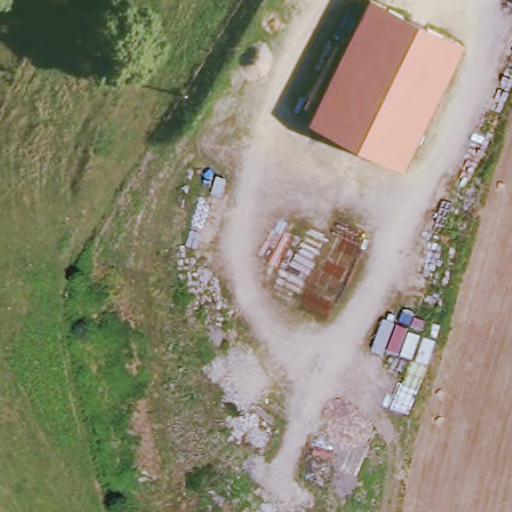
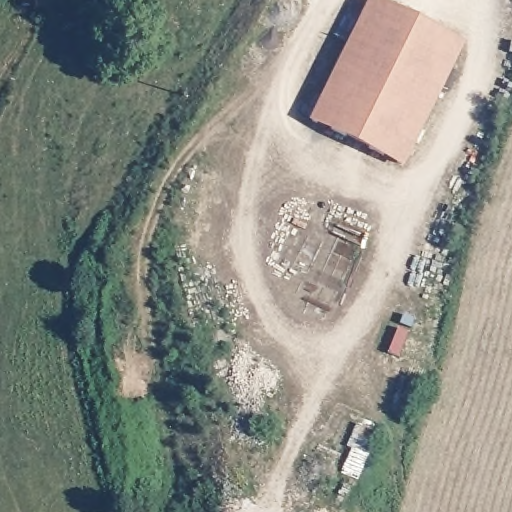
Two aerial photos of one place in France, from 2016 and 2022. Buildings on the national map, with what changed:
unchanged [(395,170),(305,127),(365,7),(455,50),(395,170)]

